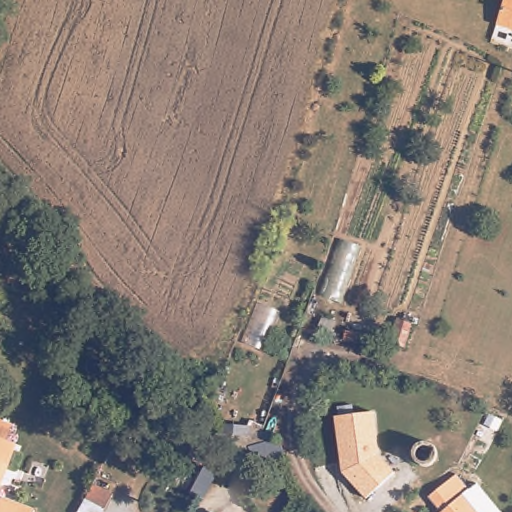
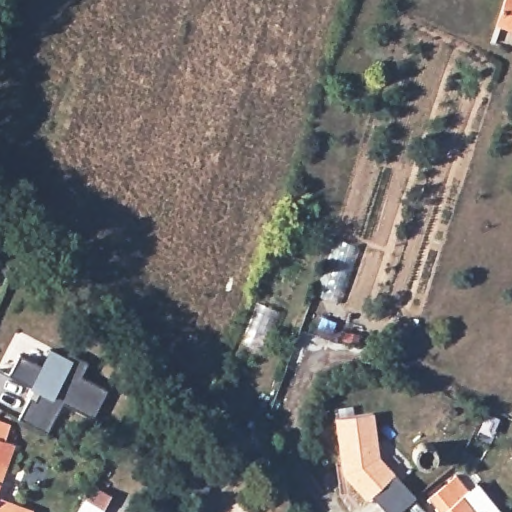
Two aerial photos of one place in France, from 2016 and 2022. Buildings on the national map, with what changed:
unchanged [(512,0),(512,23),(500,19),(507,0),(512,0)]
new [(8,375),(19,354),(41,365),(50,349),(67,358),(69,353),(88,362),(80,376),(107,390),(92,418),(62,403),(46,433),(18,418),(29,397),(34,388),(8,375)]
unchanged [(381,454),(396,473),(365,501),(342,473),(334,416),(375,412),(381,454)]
unchanged [(222,451),(197,453),(205,433),(202,430),(195,423),(206,422),(236,420),(239,439),(239,449),(222,451)]
unchanged [(2,499),(28,512),(0,512),(0,440),(16,446),(2,499)]
unchanged [(455,484),(478,512),(431,512),(427,506),(455,484)]
new [(96,485),(116,496),(108,510),(106,510),(105,512),(82,512),(88,500),(96,485)]

